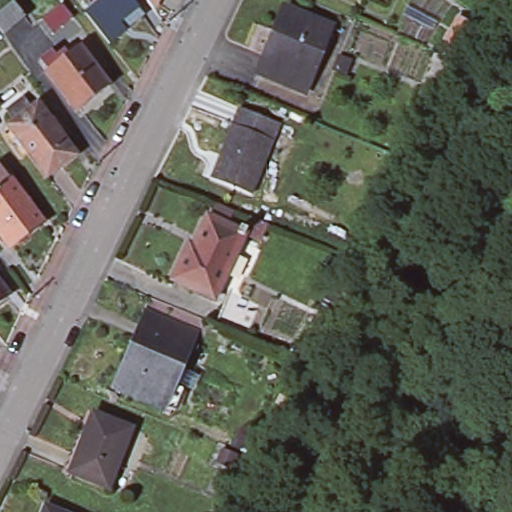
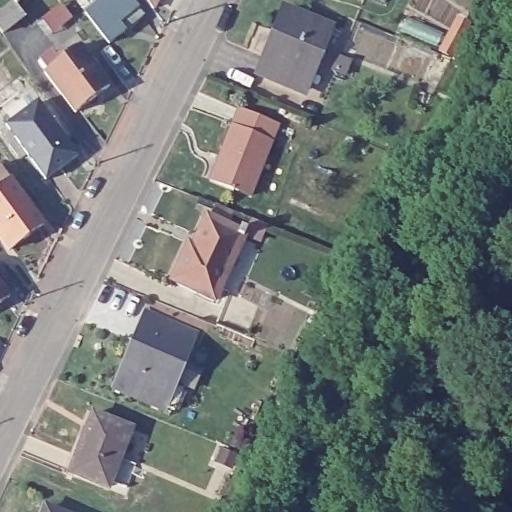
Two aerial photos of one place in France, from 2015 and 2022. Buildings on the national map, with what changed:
unchanged [(108,40),(85,12),(98,0),(132,0),(137,7),(143,14),(123,29),(108,40)]
unchanged [(161,0),(154,13),(144,0),(161,0)]
unchanged [(357,0),(366,0),(365,3),(357,0)]
unchanged [(8,39),(0,28),(0,22),(18,7),(30,22),(8,39)]
unchanged [(298,95),(255,78),(280,12),(323,30),(298,95)]
unchanged [(451,55),(441,50),(452,29),(462,35),(451,55)]
unchanged [(75,120),(45,80),(47,78),(40,69),(53,60),(57,65),(67,57),(70,61),(80,54),(109,94),(75,120)]
unchanged [(0,130),(0,128),(6,124),(37,101),(76,152),(45,176),(32,157),(25,162),(8,141),(0,130)]
unchanged [(210,176),(232,122),(238,106),(278,122),(272,138),(250,192),(210,176)]
unchanged [(0,251),(0,180),(9,192),(43,237),(9,262),(0,251)]
unchanged [(215,297),(172,277),(189,243),(193,245),(208,215),(245,232),(215,297)]
unchanged [(0,299),(0,281),(8,293),(0,299)]
unchanged [(250,333),(218,321),(225,306),(256,317),(250,333)]
unchanged [(170,413),(156,407),(110,388),(120,366),(125,368),(142,327),(137,325),(142,315),(193,336),(189,346),(178,370),(173,368),(165,387),(180,393),(170,413)]
unchanged [(108,490),(70,475),(93,416),(132,431),(108,490)]
unchanged [(47,507),(60,512),(44,512),(47,507)]

